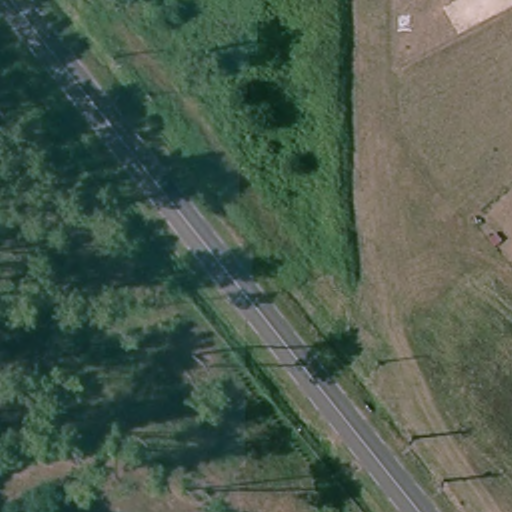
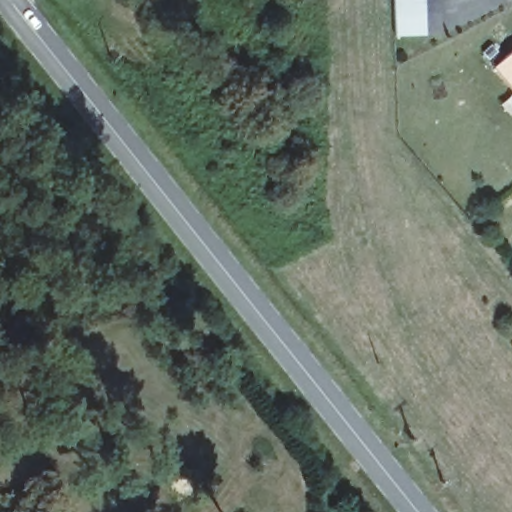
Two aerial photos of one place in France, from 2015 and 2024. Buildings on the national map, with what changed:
new [(427,37),(395,38),(393,0),(426,0),(427,37)]
new [(512,90),(492,67),(512,50),(512,90)]
new [(498,105),(512,93),(512,116),(510,117),(498,105)]
demolished [(436,435),(424,434),(425,419),(436,420),(436,435)]

